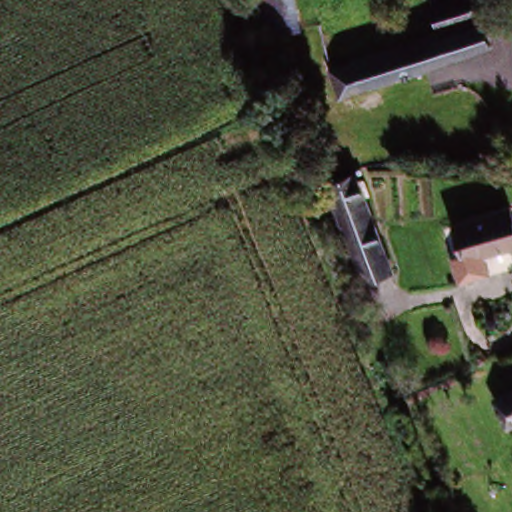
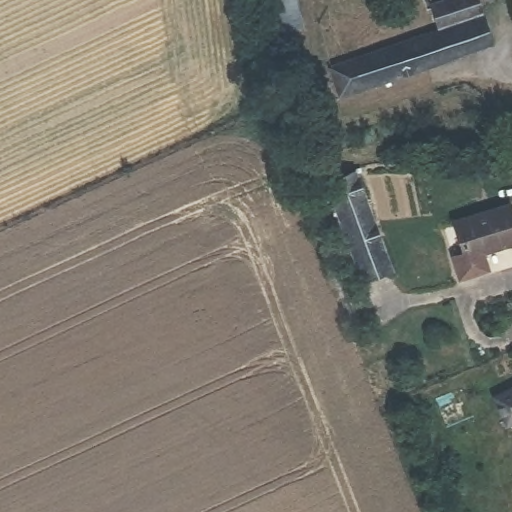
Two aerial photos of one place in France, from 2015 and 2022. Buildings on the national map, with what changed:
unchanged [(449,0),(480,0),(485,14),(446,29),(436,5),(449,0)]
unchanged [(485,14),(496,44),(455,60),(446,29),(485,14)]
unchanged [(455,60),(372,94),(359,63),(446,29),(455,60)]
unchanged [(392,256),(361,269),(330,194),(345,187),(361,183),(392,256)]
unchanged [(460,264),(457,255),(457,252),(468,248),(459,223),(512,204),(512,242),(483,253),(490,269),(466,279),(460,264)]

